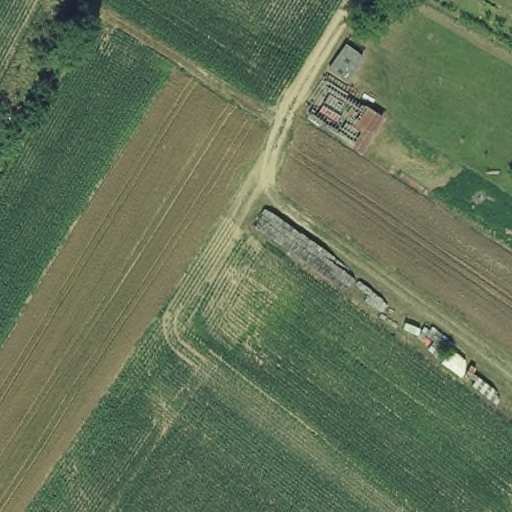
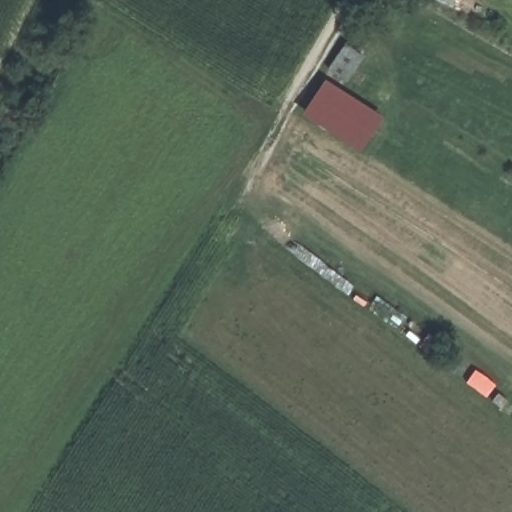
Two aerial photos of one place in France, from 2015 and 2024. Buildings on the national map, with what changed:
new [(346,82),(327,70),(346,44),(362,57),(346,82)]
demolished [(299,120),(340,47),(361,57),(340,93),(365,105),(340,142),(299,120)]
new [(360,154),(301,118),(325,82),(382,118),(360,154)]

